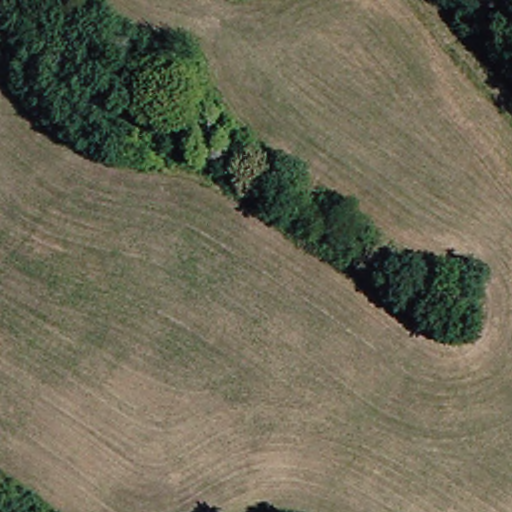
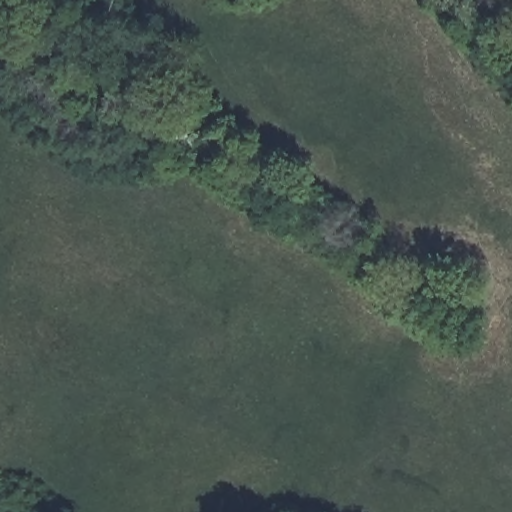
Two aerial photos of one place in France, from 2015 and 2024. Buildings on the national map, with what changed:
unchanged [(178,92),(167,82),(192,57),(202,66),(178,92)]

